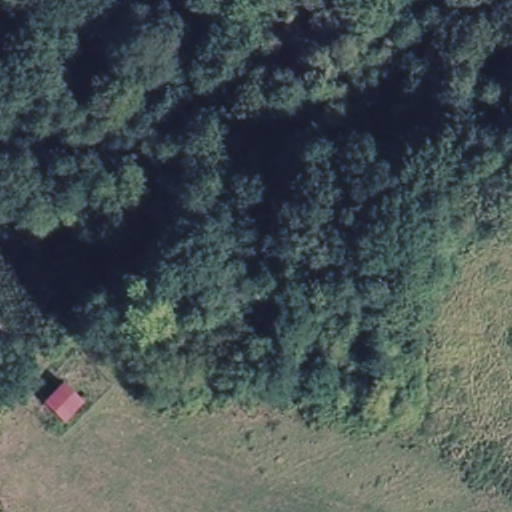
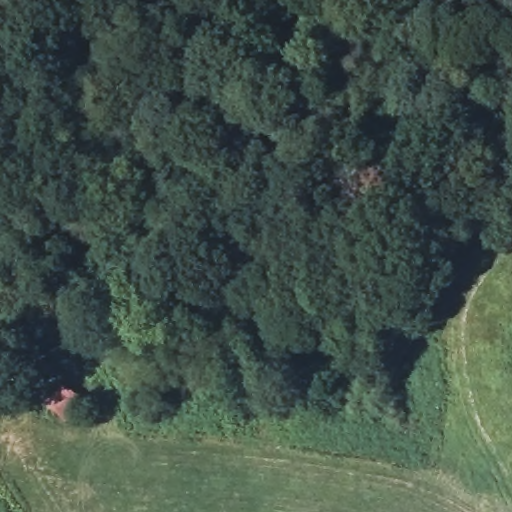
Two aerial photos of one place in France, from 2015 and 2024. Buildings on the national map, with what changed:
unchanged [(88,394),(74,412),(56,397),(70,379),(88,394)]

